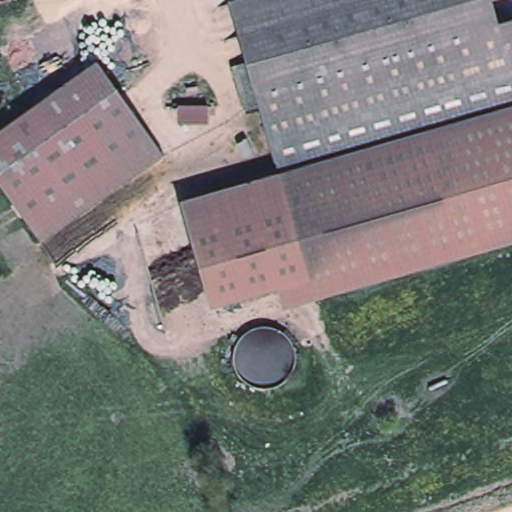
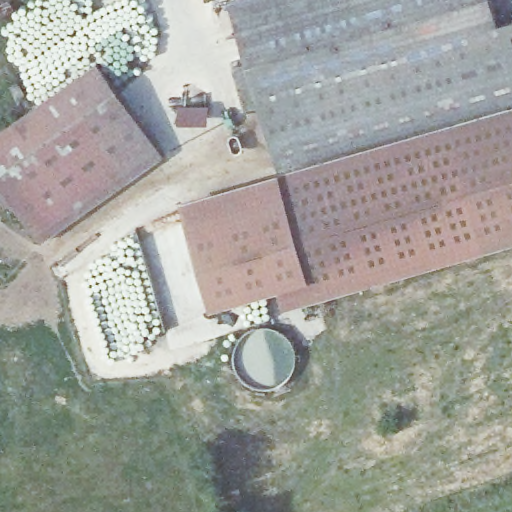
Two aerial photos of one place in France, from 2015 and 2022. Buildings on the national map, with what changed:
unchanged [(492,0),(500,26),(512,23),(512,110),(279,174),(231,3),(240,0),(492,0)]
unchanged [(42,241),(0,179),(0,131),(99,63),(163,155),(42,241)]
unchanged [(512,110),(512,247),(290,310),(282,286),(213,306),(185,198),(279,174),(512,110)]

